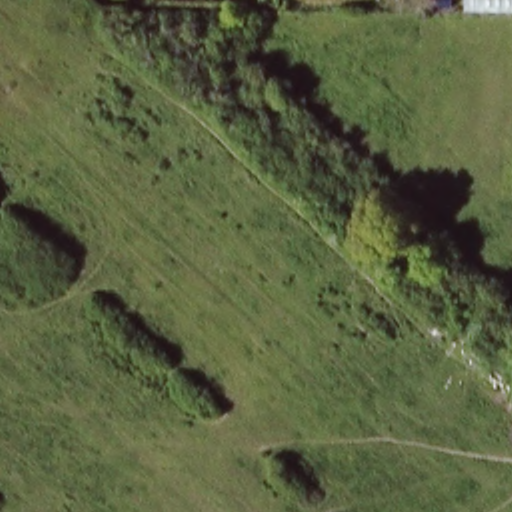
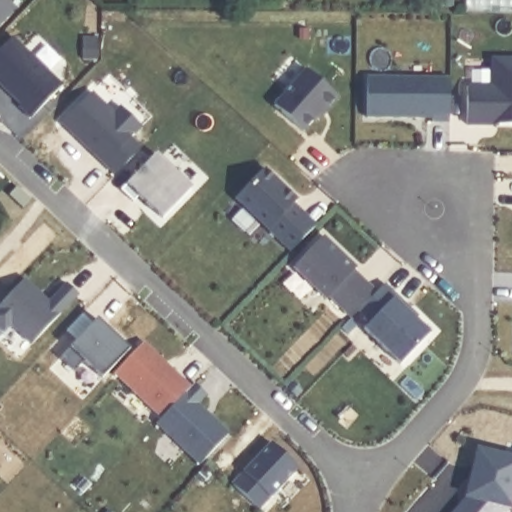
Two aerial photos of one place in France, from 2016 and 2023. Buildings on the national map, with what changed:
new [(0,24),(0,0),(8,0),(16,8),(0,24)]
new [(62,86),(32,118),(0,87),(0,50),(12,37),(62,86)]
new [(467,125),(465,84),(489,84),(490,57),(512,57),(512,124),(467,125)]
new [(306,69),(340,99),(319,121),(316,118),(304,132),(274,106),(306,69)]
new [(367,78),(450,79),(449,122),(432,122),(432,118),(367,118),(367,78)]
new [(130,137),(142,147),(115,175),(60,122),(90,89),(112,111),(120,102),(142,125),(130,137)]
new [(156,154),(192,189),(163,219),(139,196),(134,202),(122,190),(156,154)]
new [(290,251),(234,196),(264,165),(290,189),(289,190),(297,199),(293,204),(316,225),(290,251)]
new [(324,236),(357,268),(355,270),(377,291),(364,305),(352,317),(329,297),(327,299),(294,267),(324,236)]
new [(49,302),(67,283),(79,295),(32,344),(12,325),(5,332),(0,327),(0,304),(25,279),(49,302)]
new [(384,283),(407,304),(419,316),(415,319),(430,333),(400,364),(364,329),(376,317),(364,305),(377,291),(384,283)]
new [(97,319),(130,349),(103,378),(85,361),(75,371),(60,358),(97,319)]
new [(144,342),(190,386),(161,417),(114,373),(144,342)]
new [(161,417),(190,386),(194,383),(207,394),(199,404),(230,434),(200,465),(156,423),(161,417)]
new [(272,443),(297,468),(259,508),(233,484),(272,443)]
new [(479,475),(487,469),(482,461),(485,449),(512,456),(512,511),(511,512),(460,512),(474,497),(479,475)]

